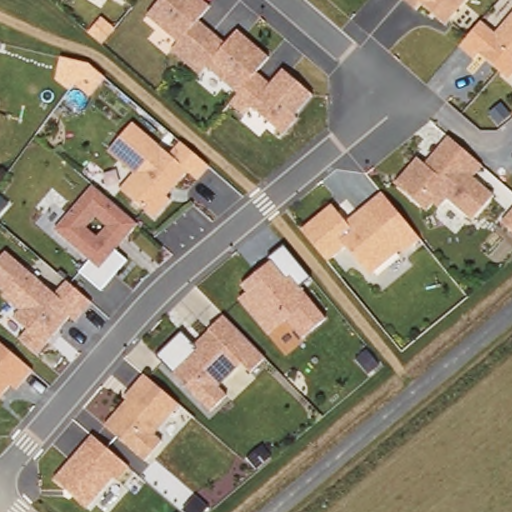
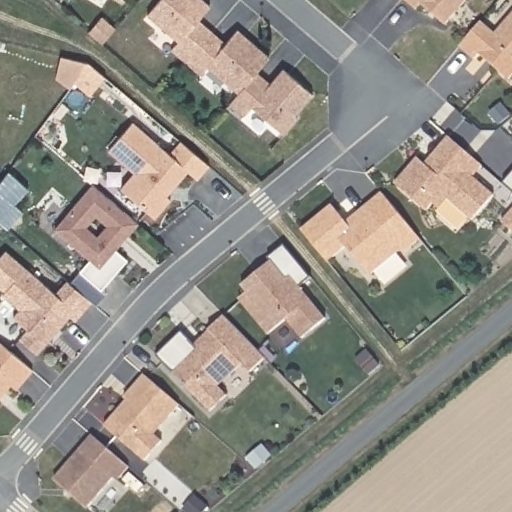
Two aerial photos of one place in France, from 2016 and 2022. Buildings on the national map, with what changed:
unchanged [(215,8),(203,22),(226,41),(240,27),(273,55),(257,72),(272,84),(286,69),(316,92),(288,137),(255,109),(247,118),(230,103),(240,92),(211,67),(203,76),(170,50),(177,38),(150,16),(163,0),(205,0),(215,8)]
unchanged [(449,27),(423,1),(416,9),(406,0),(469,0),(449,27)]
unchanged [(485,22),(500,32),(512,17),(512,79),(463,45),(485,22)]
unchanged [(91,63),(105,80),(89,98),(77,88),(75,90),(57,80),(60,59),(91,63)]
unchanged [(171,150),(182,137),(210,161),(199,175),(189,167),(167,191),(172,195),(155,213),(122,184),(136,168),(110,145),(135,117),(171,150)]
unchanged [(474,171),(495,190),(473,215),(448,192),(440,202),(435,197),(427,205),(396,179),(418,152),(425,159),(450,131),(452,134),(483,160),(474,171)]
unchanged [(92,181),(139,222),(119,249),(130,258),(102,292),(81,272),(92,258),(56,230),(92,181)]
unchanged [(333,200),(349,219),(368,202),(403,244),(371,270),(347,241),(330,257),(307,230),(303,225),(333,200)]
unchanged [(512,206),(512,224),(503,216),(512,206)]
unchanged [(245,297),(252,291),(246,283),(275,260),(290,276),(296,272),(327,315),(302,337),(286,316),(270,330),(245,297)]
unchanged [(25,267),(56,291),(67,280),(91,300),(78,320),(70,315),(40,351),(25,340),(32,330),(17,320),(21,311),(5,292),(25,267)]
unchanged [(184,327),(197,341),(212,326),(211,326),(226,311),(268,353),(254,368),(245,359),(221,382),(230,391),(214,407),(159,352),(184,327)]
unchanged [(1,340),(34,370),(20,387),(10,384),(0,397),(0,342),(1,340)]
unchanged [(157,430),(165,437),(149,457),(108,422),(130,396),(127,394),(133,387),(147,370),(167,387),(183,401),(157,430)]
unchanged [(119,471),(92,502),(59,474),(85,443),(119,471)]

